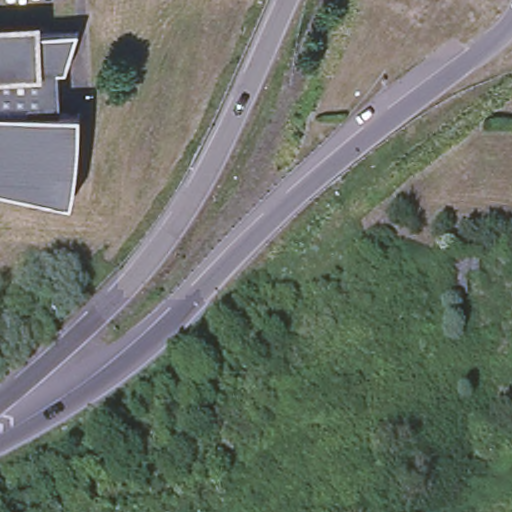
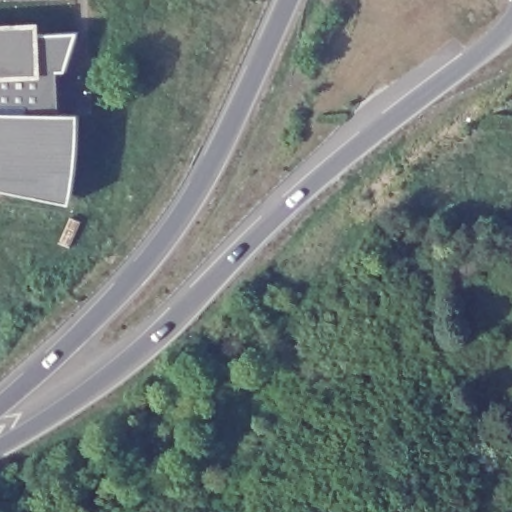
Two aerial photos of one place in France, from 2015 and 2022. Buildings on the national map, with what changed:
unchanged [(66,67),(60,67),(61,109),(68,109),(65,153),(63,163),(0,151),(0,33),(78,29),(66,67)]
unchanged [(60,195),(0,185),(0,151),(63,163),(60,195)]

